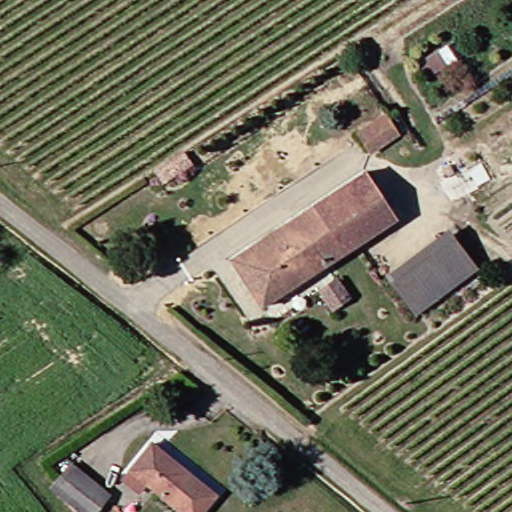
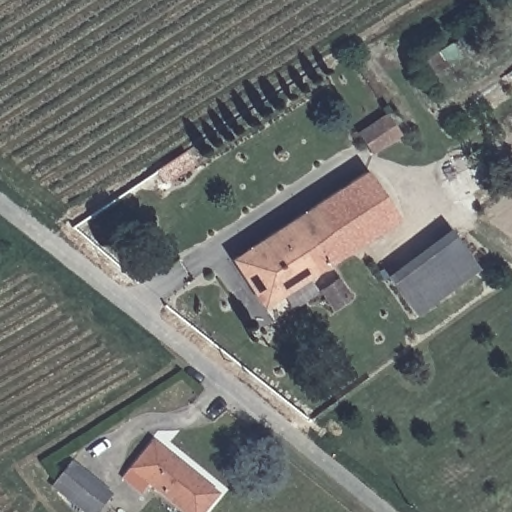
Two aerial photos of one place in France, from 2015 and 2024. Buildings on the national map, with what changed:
unchanged [(351,131),(378,115),(390,108),(397,119),(402,127),(390,134),(363,150),(351,131)]
unchanged [(224,255),(360,174),(389,222),(252,303),(224,255)]
unchanged [(468,274),(405,312),(381,272),(445,235),(468,274)]
unchanged [(174,512),(140,489),(134,497),(115,481),(142,450),(209,499),(199,512),(174,512)]
unchanged [(91,512),(74,512),(45,490),(61,469),(102,499),(91,512)]

